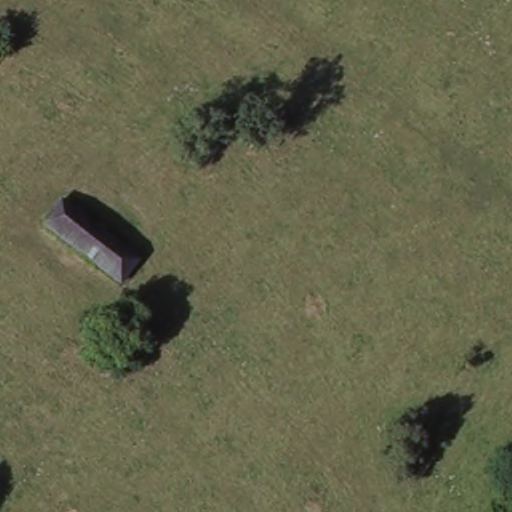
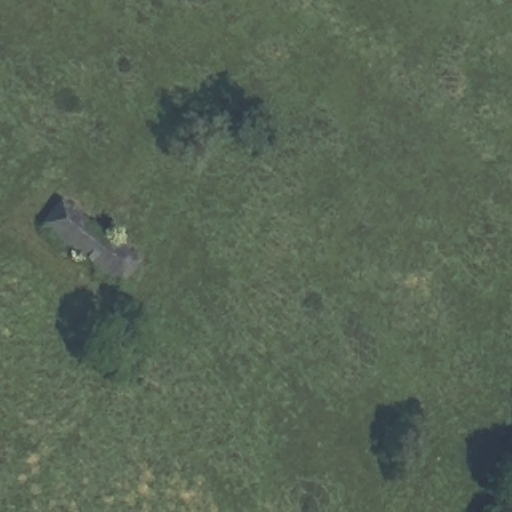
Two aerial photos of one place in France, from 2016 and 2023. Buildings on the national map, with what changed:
unchanged [(141,268),(124,289),(44,227),(60,205),(141,268)]

